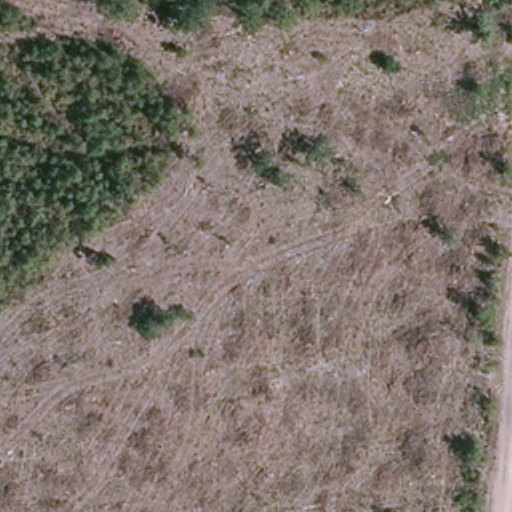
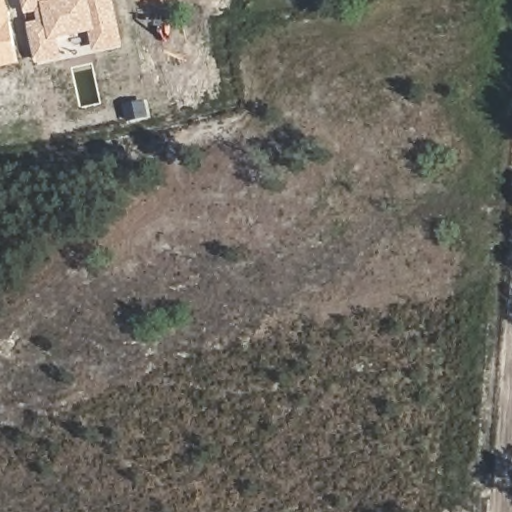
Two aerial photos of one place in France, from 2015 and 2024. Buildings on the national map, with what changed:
new [(0,0),(7,0),(22,64),(0,69),(0,0)]
new [(126,47),(96,53),(91,34),(61,39),(66,59),(39,64),(24,0),(116,0),(126,47)]
new [(144,4),(143,0),(160,0),(144,4)]

